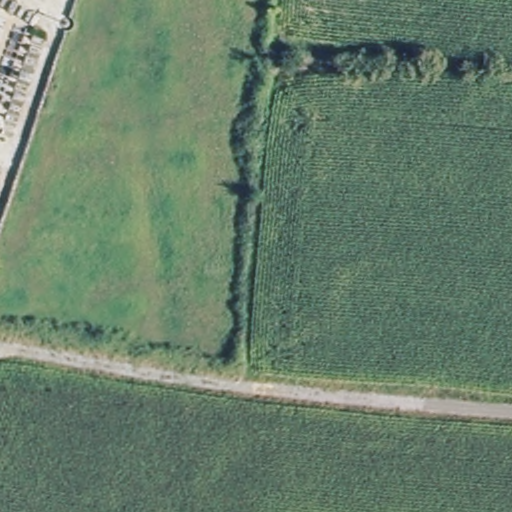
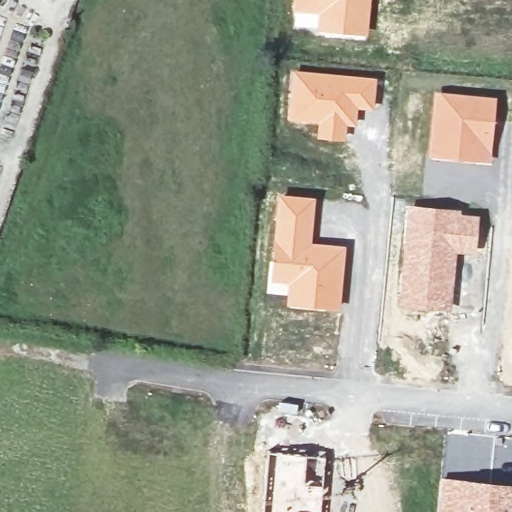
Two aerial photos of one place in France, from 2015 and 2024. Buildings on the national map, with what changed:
new [(294,0),(371,0),(367,36),(316,31),(317,14),(310,14),(309,27),(295,26),(296,12),(293,12),(294,0)]
new [(292,70),(376,78),(374,109),(358,108),(355,126),(347,125),(345,141),(317,138),(318,124),(288,121),(292,70)]
new [(434,91),(497,96),(492,163),(428,158),(434,91)]
new [(277,194),(316,197),(313,241),(346,245),(341,312),(286,306),(286,294),(268,292),(277,194)]
new [(407,204),(461,209),(461,212),(480,214),(476,254),(457,252),(451,313),(398,307),(407,204)]
new [(263,512),(268,451),(325,457),(320,512),(263,512)]
new [(512,483),(512,512),(438,512),(441,476),(512,483)]

